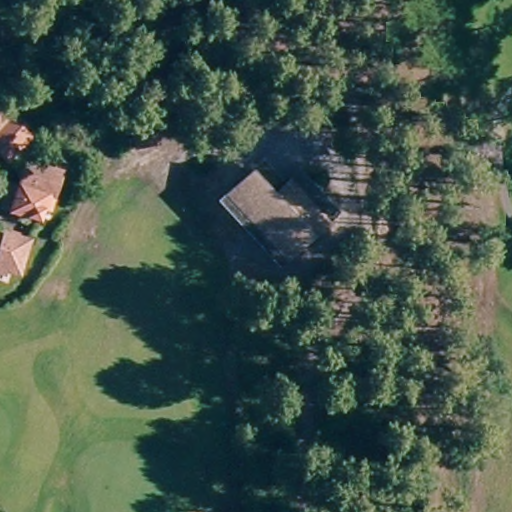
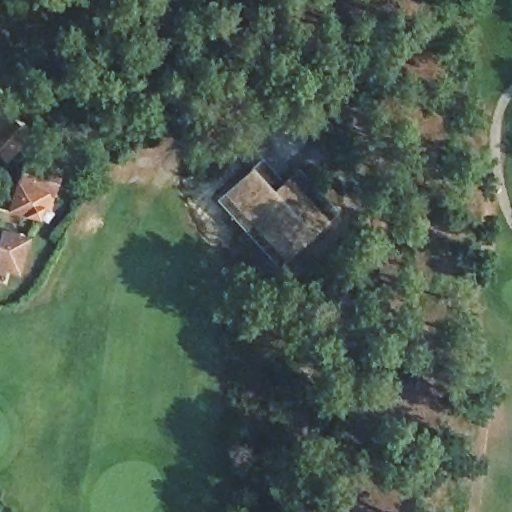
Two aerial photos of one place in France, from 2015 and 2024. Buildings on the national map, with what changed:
unchanged [(152,137),(128,142),(124,120),(147,115),(152,137)]
unchanged [(2,124),(5,121),(26,139),(6,161),(0,155),(0,123),(2,124)]
unchanged [(32,220),(0,211),(0,195),(4,182),(13,185),(22,162),(49,171),(32,220)]
unchanged [(219,199),(238,182),(248,173),(261,186),(270,195),(284,182),(321,223),(269,271),(253,255),(209,209),(219,199)]
unchanged [(7,279),(0,277),(0,241),(17,246),(7,279)]

